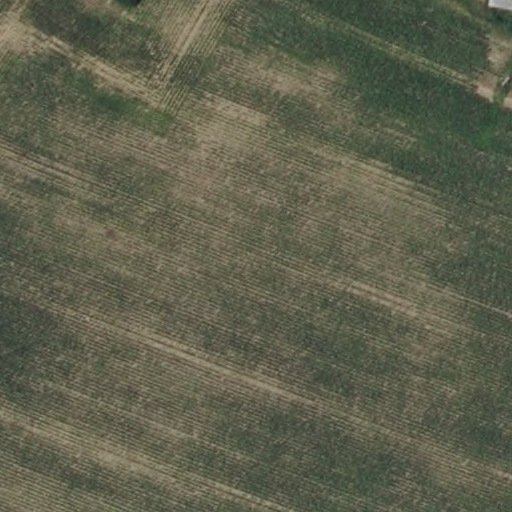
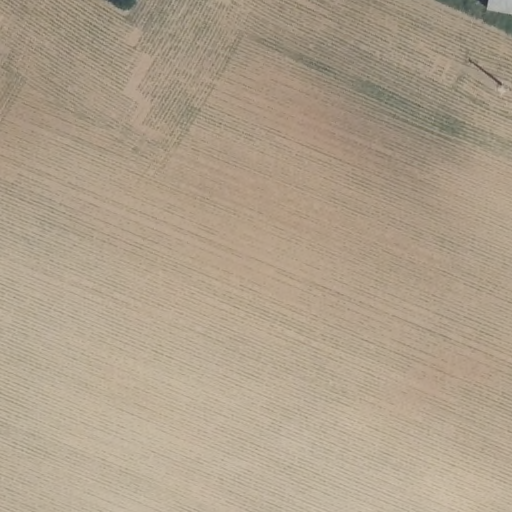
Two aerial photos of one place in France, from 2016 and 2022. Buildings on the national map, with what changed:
unchanged [(495,10),(496,0),(512,0),(512,13),(495,10)]

